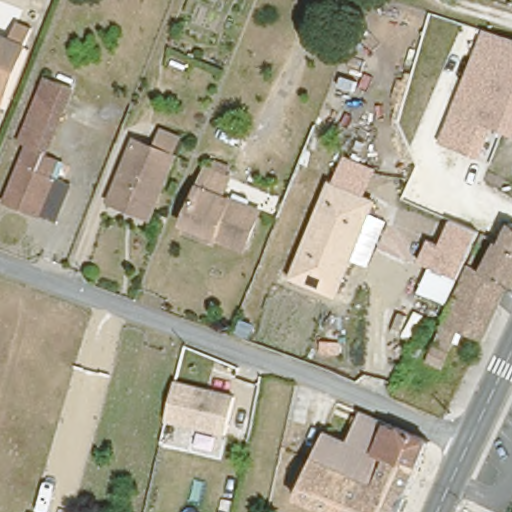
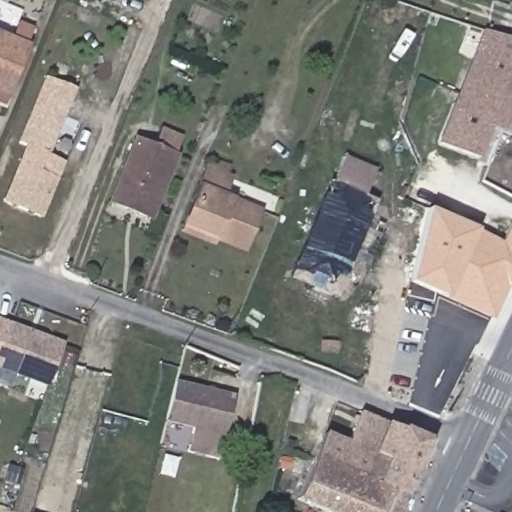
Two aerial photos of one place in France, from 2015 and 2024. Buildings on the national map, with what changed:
unchanged [(487,128),(494,131),(484,159),(438,142),(486,31),(512,39),(512,62),(487,128)]
unchanged [(4,94),(0,92),(0,38),(24,47),(4,94)]
unchanged [(494,131),(487,128),(512,62),(512,138),(494,131)]
unchanged [(69,185),(54,224),(4,204),(27,148),(19,146),(46,82),(69,92),(38,172),(69,185)]
unchanged [(110,198),(135,139),(175,156),(151,214),(110,198)]
unchanged [(182,229),(184,222),(205,165),(210,167),(214,156),(228,162),(224,173),(229,175),(222,193),(258,208),(244,246),(214,234),(212,241),(182,229)]
unchanged [(334,186),(346,157),(378,169),(366,200),(334,186)]
unchanged [(310,281),(293,274),(330,185),(334,186),(366,200),(372,202),(339,283),(335,292),(310,281)]
unchanged [(484,235),(447,310),(416,297),(449,222),(484,235)]
unchanged [(512,227),(512,292),(483,344),(466,340),(460,350),(451,346),(439,368),(424,357),(447,310),(484,235),(503,243),(510,226),(512,227)]
new [(64,344),(50,383),(0,366),(0,361),(12,325),(64,344)]
unchanged [(170,422),(179,384),(239,398),(231,436),(170,422)]
unchanged [(410,498),(404,512),(326,512),(298,500),(314,459),(324,432),(349,442),(362,412),(431,441),(409,494),(412,495),(410,498)]

